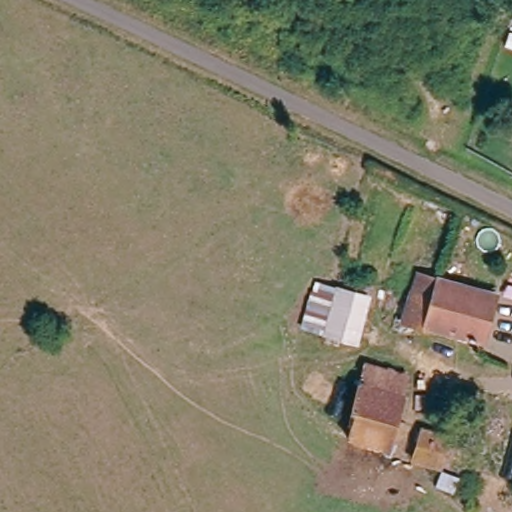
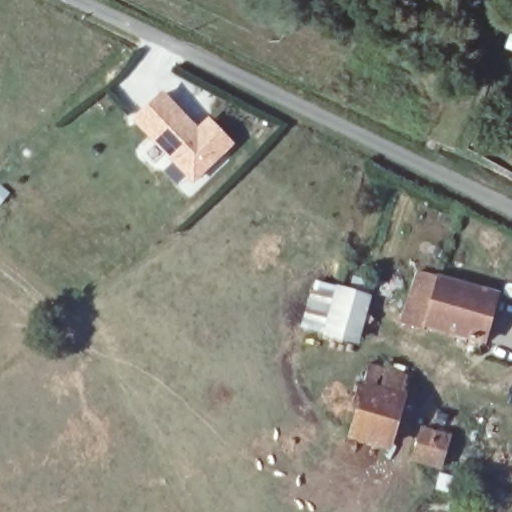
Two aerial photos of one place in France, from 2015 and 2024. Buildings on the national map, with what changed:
new [(162,92),(197,128),(207,119),(235,146),(192,186),(130,122),(162,92)]
unchanged [(406,321),(420,272),(495,293),(499,295),(495,312),(488,345),(406,321)]
unchanged [(302,329),(310,298),(315,298),(318,284),(346,288),(351,278),(373,285),(370,296),(372,297),(357,346),(302,329)]
unchanged [(371,365),(404,374),(385,446),(350,437),(371,365)]
unchanged [(440,469),(413,461),(422,430),(449,437),(440,469)]

